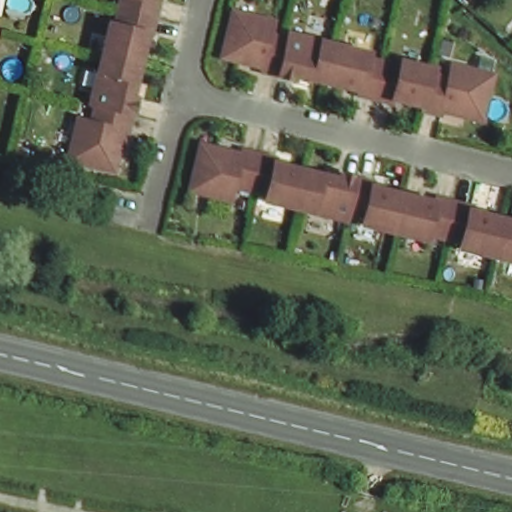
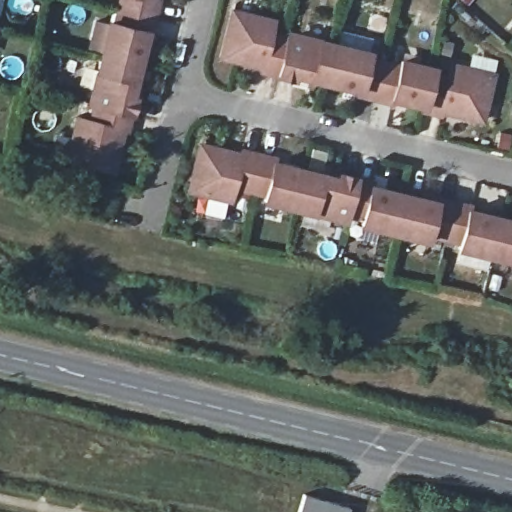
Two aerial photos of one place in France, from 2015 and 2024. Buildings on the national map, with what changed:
unchanged [(146,23),(142,22),(126,87),(130,88),(121,121),(118,121),(108,161),(62,150),(73,108),(86,112),(94,80),(88,79),(104,12),(110,14),(114,0),(152,0),(146,23)]
unchanged [(274,12),(271,25),(302,33),(304,27),(369,43),(368,49),(399,57),(400,51),(433,59),(432,65),(447,69),(451,55),(492,66),(481,112),(440,101),(439,105),(421,101),(422,97),(392,89),(391,93),(358,85),(359,81),(294,65),(294,69),(261,61),(261,57),(221,47),(233,1),(274,12)]
unchanged [(229,145),(231,141),(238,143),(264,149),(263,153),(326,169),(328,165),(361,174),(359,178),(424,193),(424,190),(458,198),(457,202),(512,215),(512,256),(446,240),(448,234),(417,226),(415,232),(349,215),(351,210),(319,202),(318,208),(252,191),(253,185),(223,178),(219,191),(178,181),(189,135),(229,145)]
new [(352,512),(301,512),(306,497),(352,512)]

